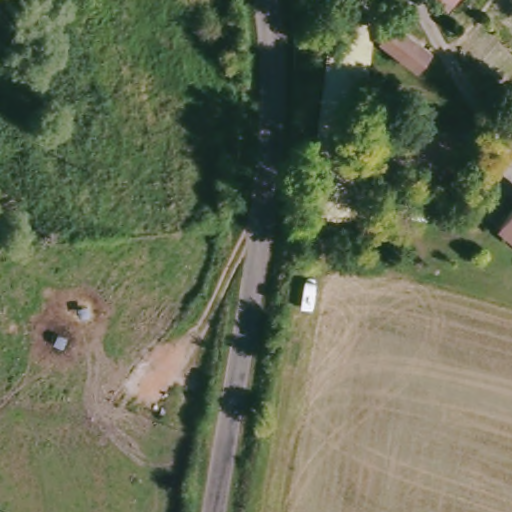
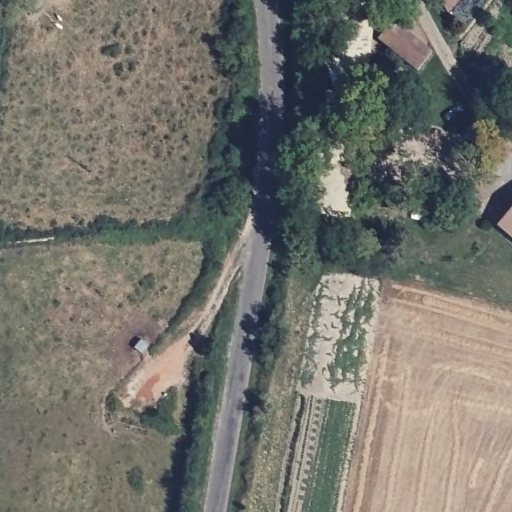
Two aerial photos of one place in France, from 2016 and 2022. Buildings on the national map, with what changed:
unchanged [(372,0),(350,178),(341,247),(295,241),(306,162),(327,0),(372,0)]
unchanged [(420,42),(409,57),(375,31),(385,16),(420,42)]
unchanged [(512,240),(488,220),(512,190),(512,240)]

